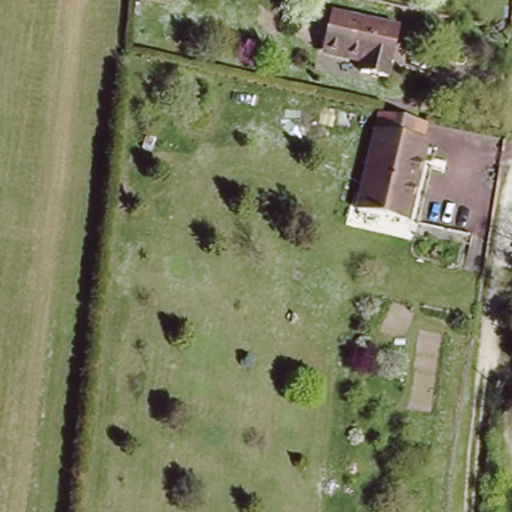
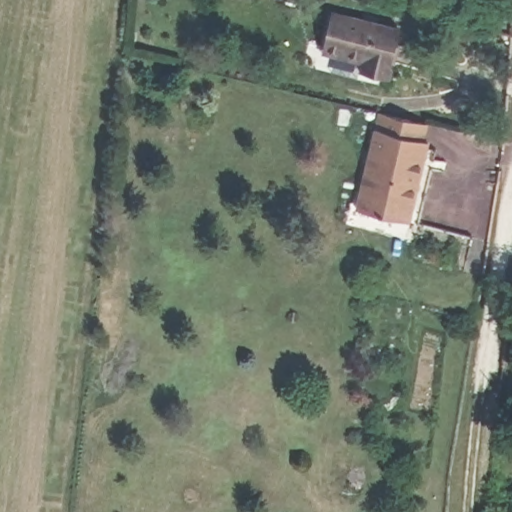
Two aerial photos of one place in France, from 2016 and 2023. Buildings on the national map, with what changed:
unchanged [(402,27),(390,76),(360,69),(363,57),(324,48),(332,11),(402,27)]
unchanged [(421,145),(428,147),(410,225),(355,212),(377,111),(427,122),(421,145)]

